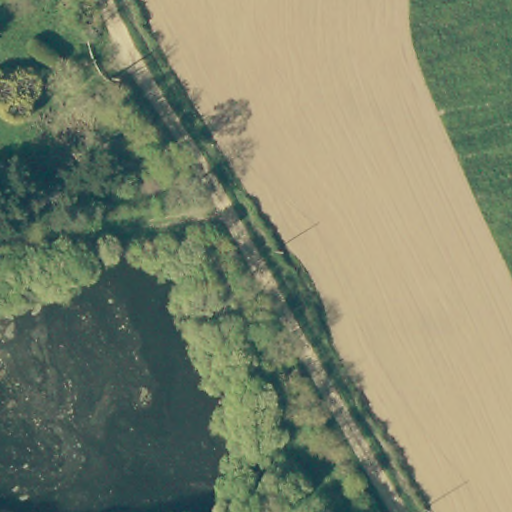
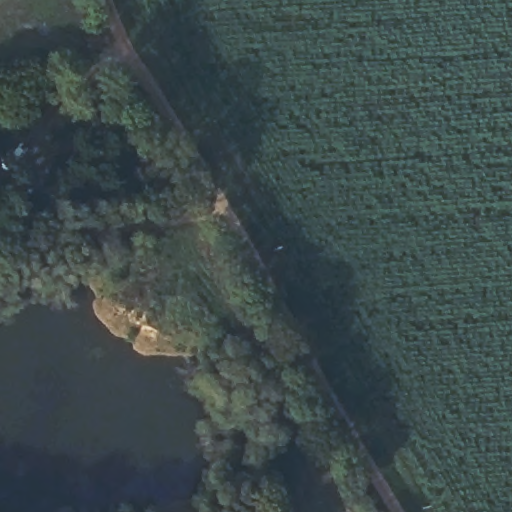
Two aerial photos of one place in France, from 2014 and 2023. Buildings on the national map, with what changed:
unchanged [(126,158),(109,166),(98,146),(115,137),(126,158)]

